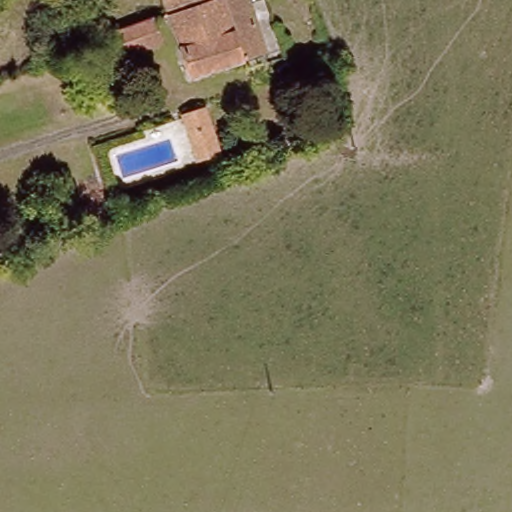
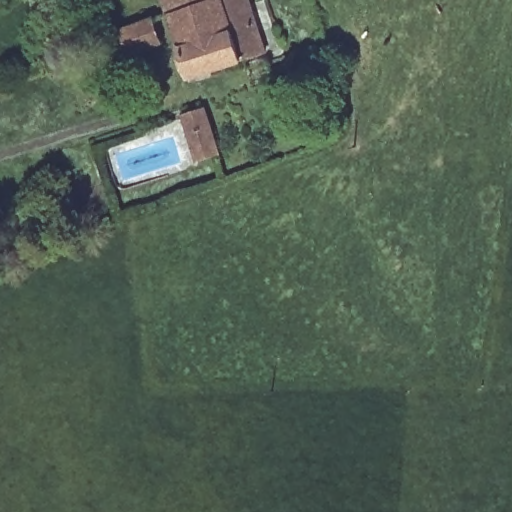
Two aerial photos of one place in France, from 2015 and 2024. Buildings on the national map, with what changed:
unchanged [(163,0),(195,0),(166,9),(163,0)]
unchanged [(186,77),(166,9),(195,0),(266,0),(279,49),(186,77)]
unchanged [(116,54),(109,32),(154,21),(160,40),(116,54)]
unchanged [(199,159),(187,119),(208,113),(222,152),(199,159)]

